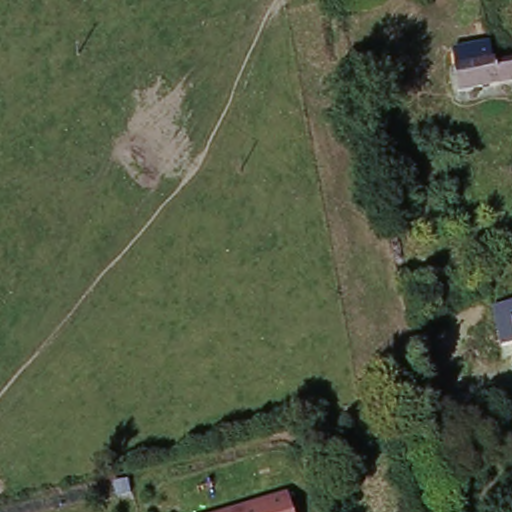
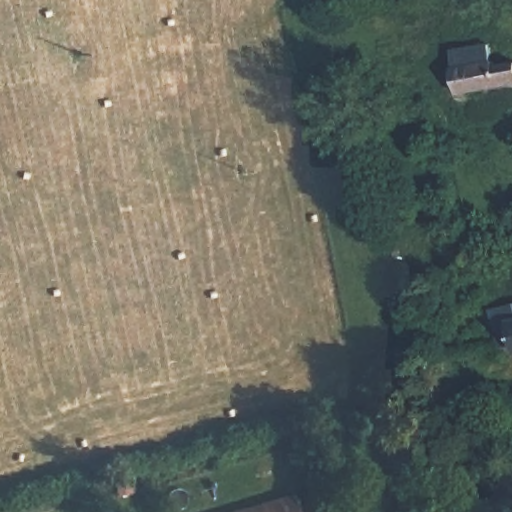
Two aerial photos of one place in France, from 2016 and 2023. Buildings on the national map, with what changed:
unchanged [(452,47),(492,37),(498,65),(458,72),(452,47)]
unchanged [(500,72),(512,69),(512,91),(464,101),(458,72),(498,65),(500,72)]
unchanged [(512,311),(512,347),(505,312),(512,311)]
unchanged [(452,408),(457,427),(450,428),(422,433),(418,409),(444,404),(452,408)]
unchanged [(229,512),(286,497),(290,512),(229,512)]

